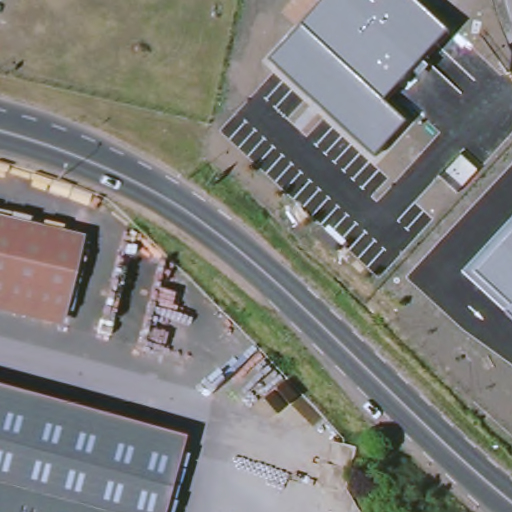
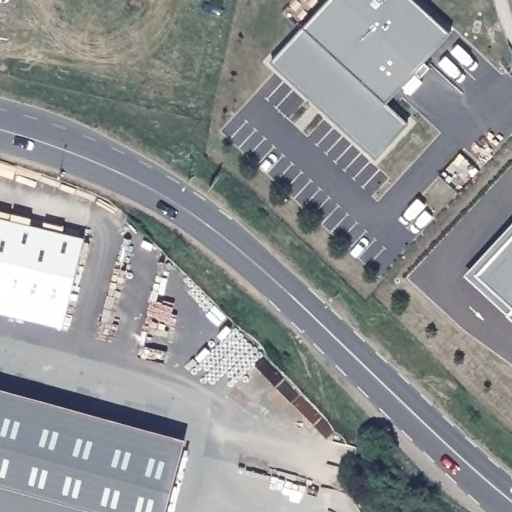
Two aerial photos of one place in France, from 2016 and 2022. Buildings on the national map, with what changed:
unchanged [(449,34),(386,103),(408,124),(374,159),(269,61),(327,0),(413,0),(449,34)]
unchanged [(0,310),(0,216),(82,236),(61,324),(0,310)]
unchanged [(463,273),(512,221),(512,319),(463,273)]
unchanged [(166,512),(154,512),(0,470),(0,388),(186,440),(166,512)]
unchanged [(0,512),(0,470),(154,512),(0,512)]

